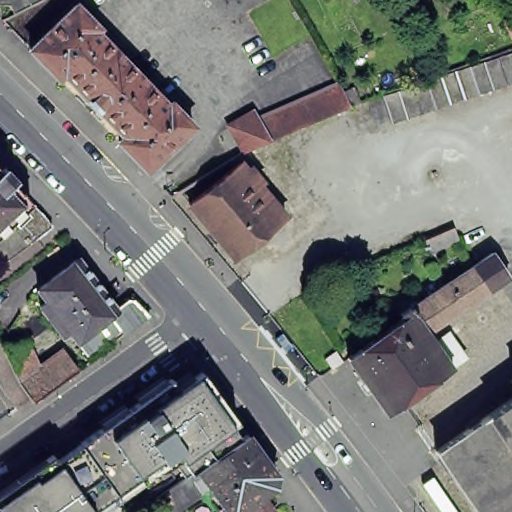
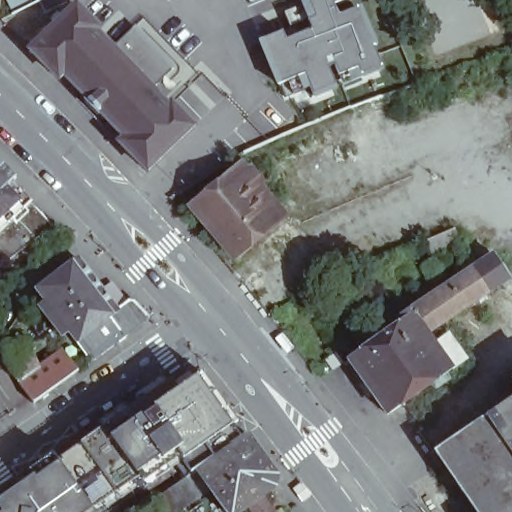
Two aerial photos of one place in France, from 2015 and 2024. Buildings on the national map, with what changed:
demolished [(13,15),(9,6),(0,6),(0,0),(43,0),(40,1),(13,15)]
demolished [(108,0),(110,0),(108,1),(108,0)]
new [(335,14),(355,6),(380,65),(357,75),(356,68),(329,75),(335,96),(298,111),(293,96),(285,100),(258,37),(281,30),(285,40),(310,30),(298,0),(339,0),(331,4),(335,14)]
unchanged [(80,11),(103,34),(100,37),(172,112),(175,109),(197,132),(152,176),(123,147),(128,142),(68,79),(63,84),(35,55),(80,11)]
demolished [(512,18),(512,38),(503,21),(512,18)]
demolished [(512,51),(512,83),(393,124),(383,95),(512,51)]
demolished [(334,115),(245,154),(228,127),(254,112),(257,119),(290,105),(292,109),(323,95),(320,90),(337,83),(350,109),(334,115)]
unchanged [(185,210),(235,168),(280,224),(230,265),(185,210)]
unchanged [(52,226),(7,261),(0,254),(0,172),(52,226)]
unchanged [(40,307),(47,302),(37,290),(78,259),(116,309),(132,296),(150,316),(125,335),(120,330),(87,355),(68,330),(61,335),(40,307)]
unchanged [(488,259),(505,283),(440,326),(438,321),(420,333),(430,348),(443,339),(460,363),(447,373),(447,374),(382,420),(343,364),(398,325),(395,321),(488,259)]
unchanged [(77,371),(33,403),(17,382),(3,351),(25,341),(37,368),(62,350),(77,371)]
unchanged [(49,454),(57,463),(165,385),(173,392),(195,376),(227,423),(232,413),(245,436),(249,431),(277,473),(277,490),(267,495),(277,511),(276,512),(253,512),(250,507),(244,512),(223,512),(208,492),(179,512),(153,512),(148,502),(190,473),(182,459),(107,512),(0,512),(0,489),(49,454)]
unchanged [(512,381),(512,385),(510,382),(512,381)]
unchanged [(440,453),(487,422),(512,403),(512,512),(474,512),(440,453)]

